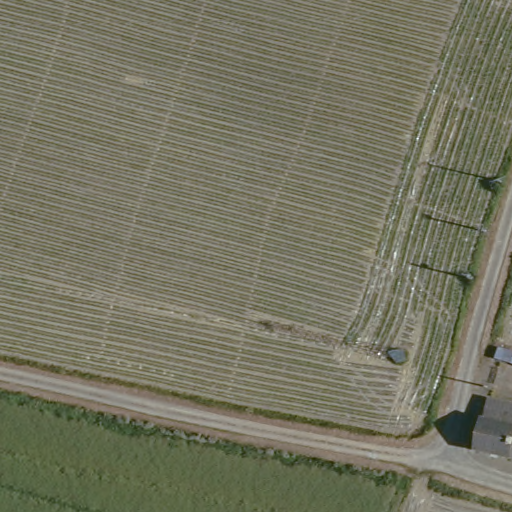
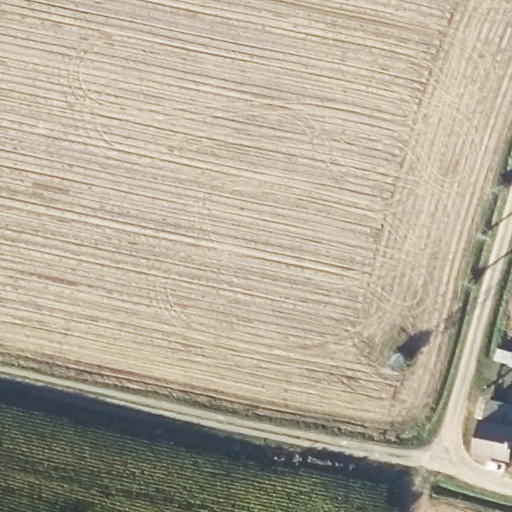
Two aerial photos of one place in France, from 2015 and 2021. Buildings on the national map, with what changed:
unchanged [(476,448),(485,413),(504,418),(501,432),(512,435),(512,457),(476,448)]

